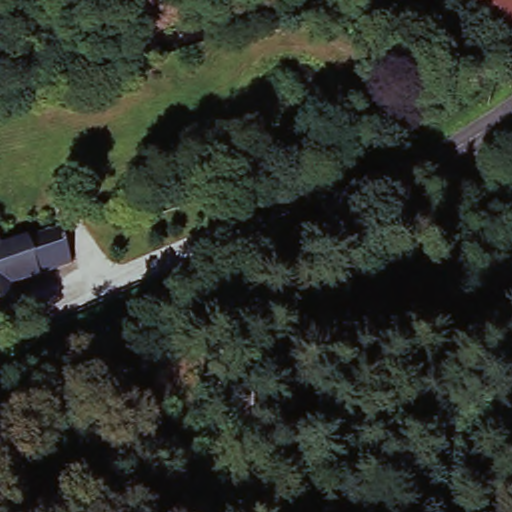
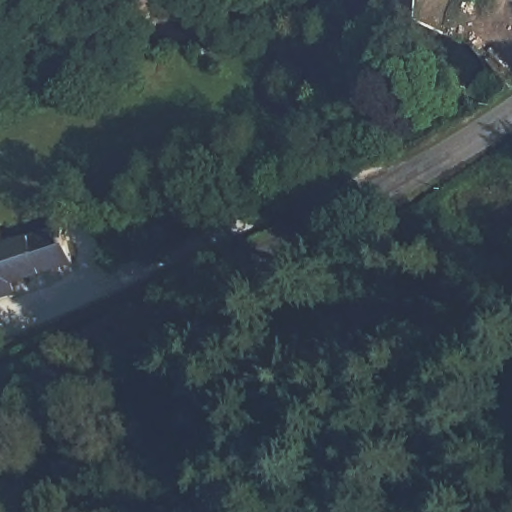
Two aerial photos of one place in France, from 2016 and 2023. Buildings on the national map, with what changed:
unchanged [(480,27),(451,0),(506,0),(480,27)]
unchanged [(512,23),(496,39),(480,27),(506,0),(512,0),(512,23)]
unchanged [(512,23),(512,55),(496,39),(512,23)]
unchanged [(67,223),(77,262),(46,268),(46,277),(21,283),(22,296),(0,302),(0,239),(67,223)]

